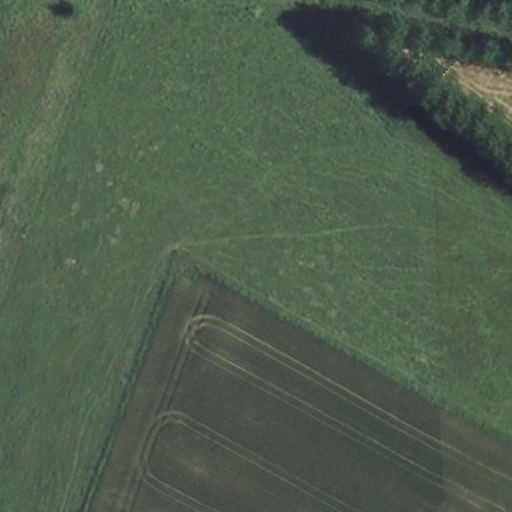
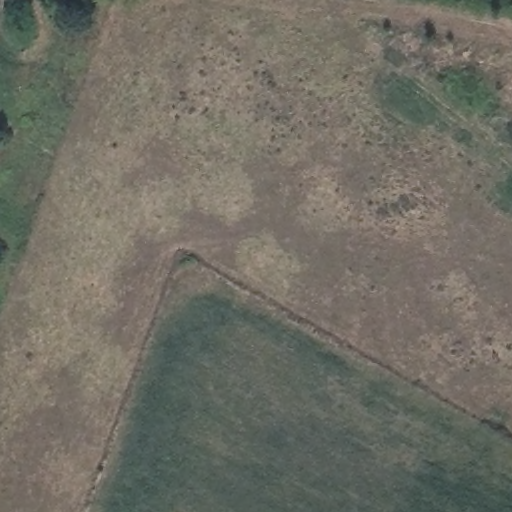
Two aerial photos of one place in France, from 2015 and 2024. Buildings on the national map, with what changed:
[]

